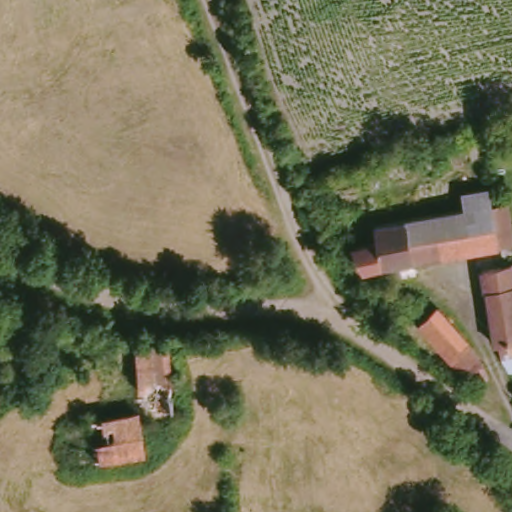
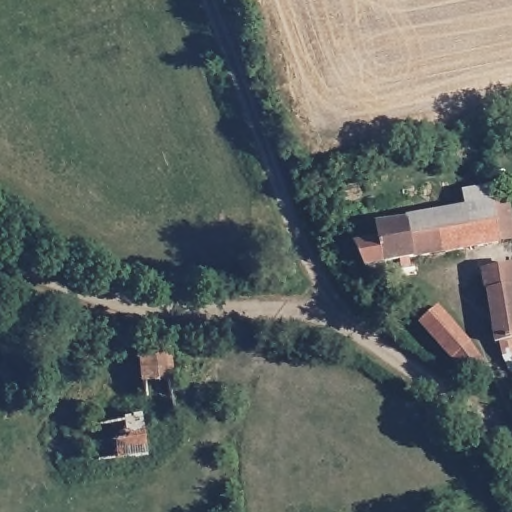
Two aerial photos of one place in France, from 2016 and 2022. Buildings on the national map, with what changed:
unchanged [(360,268),(355,244),(373,241),(370,225),(461,210),(458,193),(484,189),(487,206),(502,203),(509,239),(360,268)]
unchanged [(504,344),(500,345),(484,273),(512,267),(512,367),(504,344)]
unchanged [(474,381),(465,375),(421,325),(436,311),(483,364),(488,375),(474,381)]
unchanged [(150,418),(143,343),(174,340),(181,416),(150,418)]
unchanged [(98,423),(143,418),(146,460),(101,464),(98,423)]

